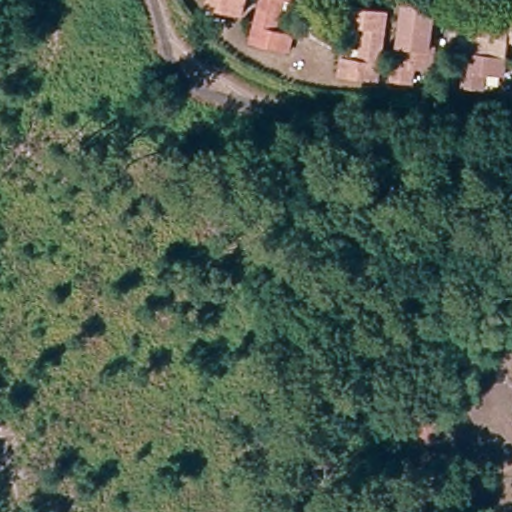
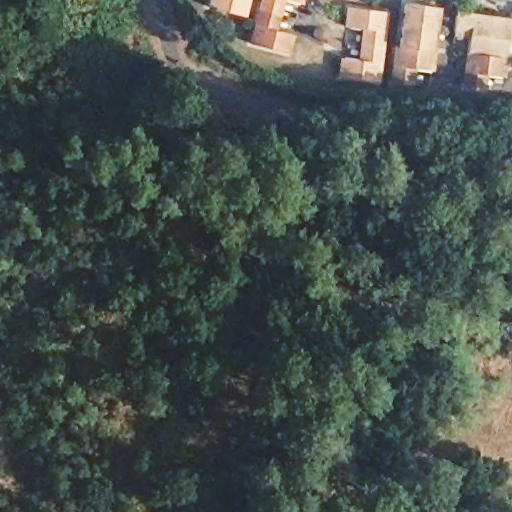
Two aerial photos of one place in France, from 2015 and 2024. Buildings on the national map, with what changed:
unchanged [(202,10),(205,0),(246,0),(242,20),(202,10)]
unchanged [(264,0),(298,0),(296,6),(280,3),(273,35),(289,38),(285,57),(252,50),(264,0)]
unchanged [(413,67),(410,86),(393,85),(404,0),(412,0),(437,4),(428,69),(413,67)]
unchanged [(509,38),(497,36),(491,74),(475,71),(470,95),(453,92),(463,31),(450,30),(452,8),(512,18),(512,21),(509,38)]
unchanged [(380,93),(345,90),(347,74),(359,74),(363,34),(350,32),(351,12),(385,15),(380,93)]
unchanged [(452,366),(407,341),(425,308),(472,332),(452,366)]
unchanged [(420,446),(403,437),(410,421),(428,430),(420,446)]

